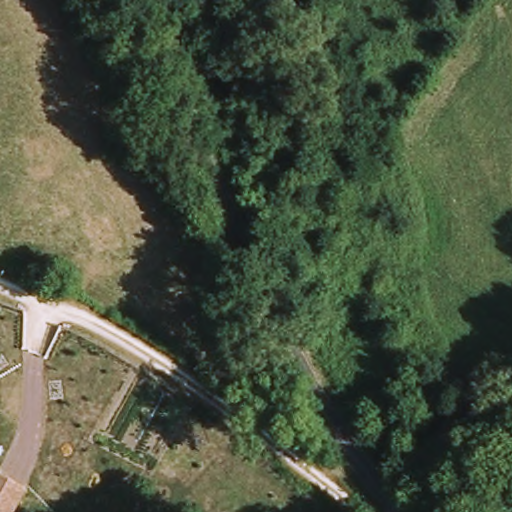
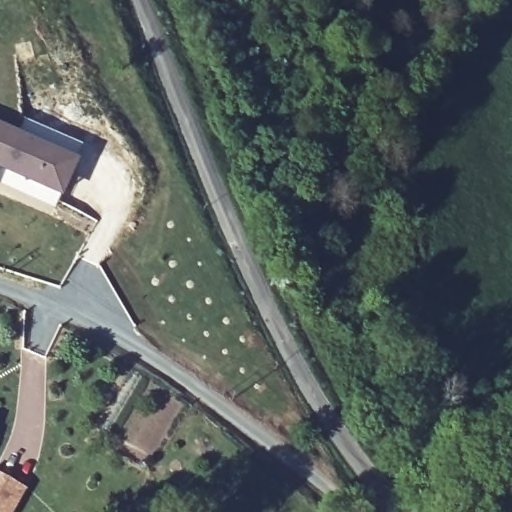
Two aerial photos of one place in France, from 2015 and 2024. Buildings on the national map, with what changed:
new [(23,118),(82,144),(75,159),(57,151),(16,133),(23,118)]
new [(16,133),(57,151),(42,184),(0,165),(0,125),(16,133)]
new [(42,184),(57,151),(75,159),(54,205),(0,181),(0,165),(42,184)]
unchanged [(30,489),(17,512),(0,512),(0,472),(30,489)]

